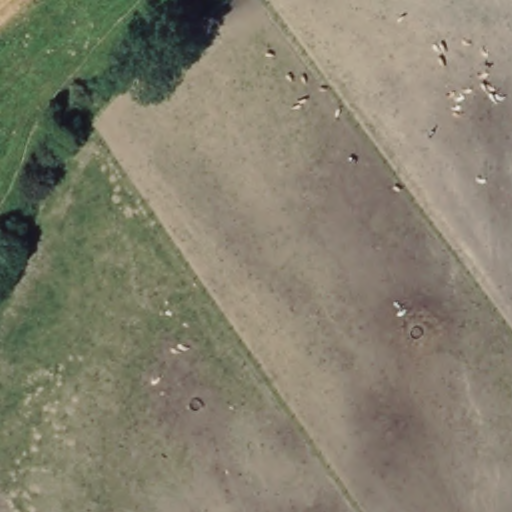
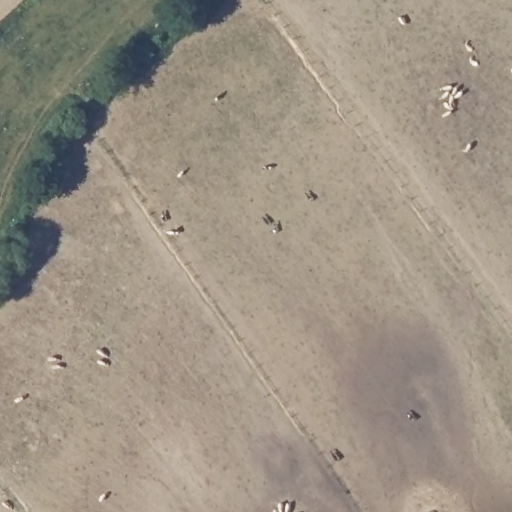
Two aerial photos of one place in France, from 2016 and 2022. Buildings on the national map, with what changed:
[]

